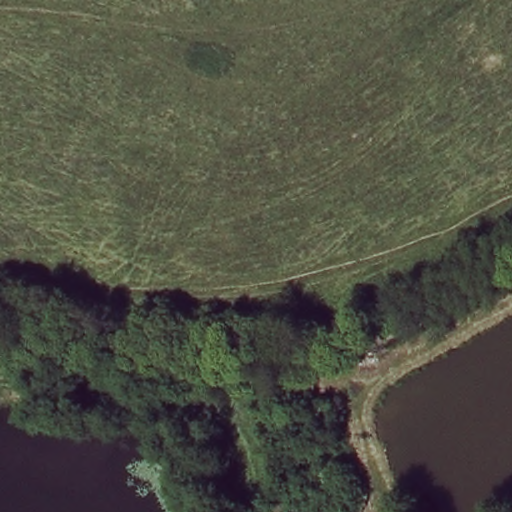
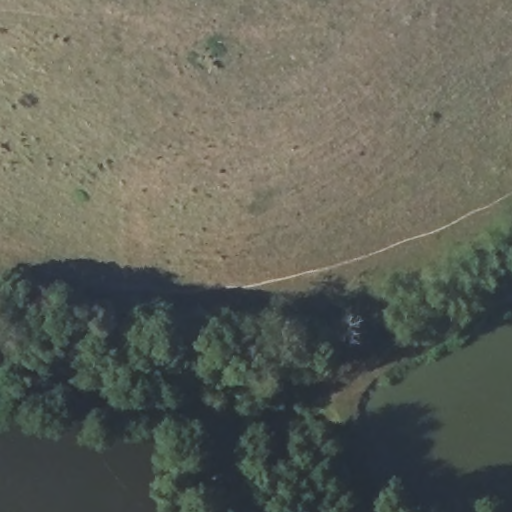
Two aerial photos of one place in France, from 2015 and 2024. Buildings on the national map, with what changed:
unchanged [(340,285),(386,270),(396,297),(351,314),(340,285)]

